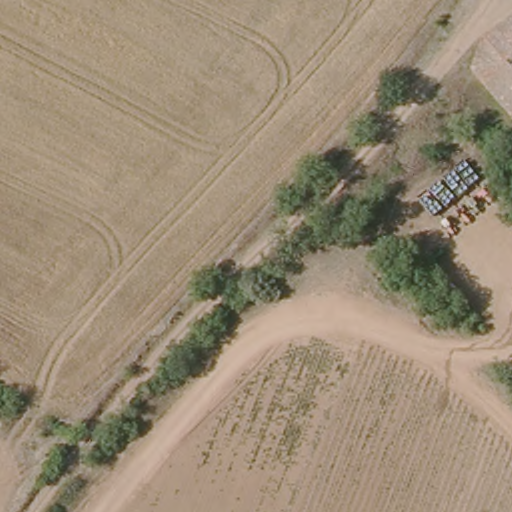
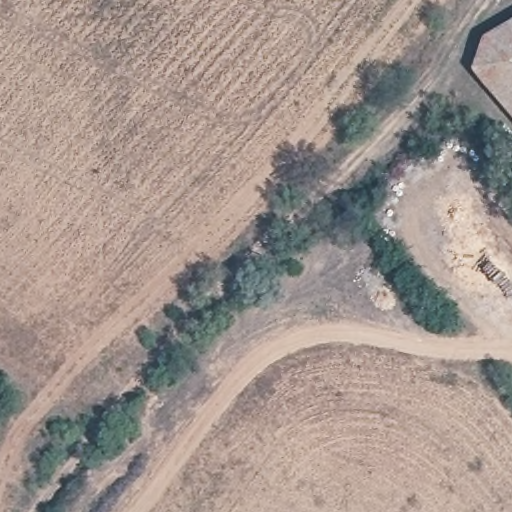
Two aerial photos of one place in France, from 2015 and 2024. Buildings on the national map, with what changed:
unchanged [(486,71),(494,38),(512,28),(512,67),(502,74),(486,71)]
unchanged [(486,71),(502,74),(512,67),(512,104),(486,71)]

